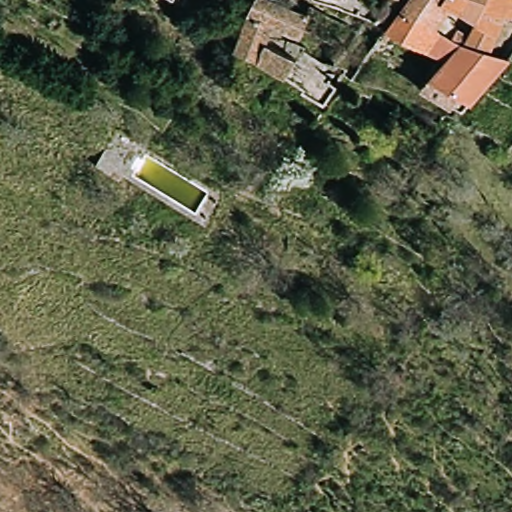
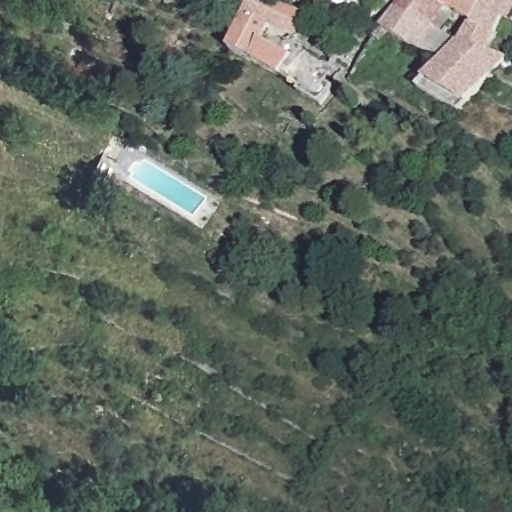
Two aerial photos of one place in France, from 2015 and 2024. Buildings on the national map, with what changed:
unchanged [(172,0),(177,0),(176,2),(172,0)]
unchanged [(311,7),(315,6),(316,3),(317,3),(319,4),(333,11),(322,34),(297,24),(285,43),(317,59),(321,52),(351,70),(346,76),(329,99),(336,104),(331,113),(229,55),(236,44),(260,0),(290,0),(309,6),(311,7)]
unchanged [(348,0),(347,5),(347,6),(330,0),(348,0)]
unchanged [(386,19),(347,6),(349,0),(367,0),(392,10),(386,19)]
unchanged [(393,25),(413,0),(512,0),(512,17),(493,46),(508,57),(469,104),(424,83),(441,47),(393,25)]

